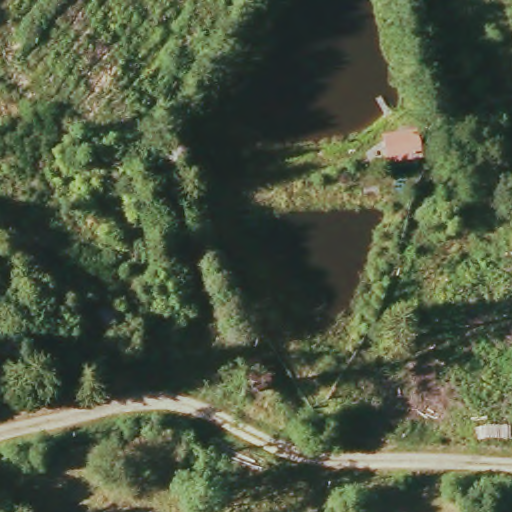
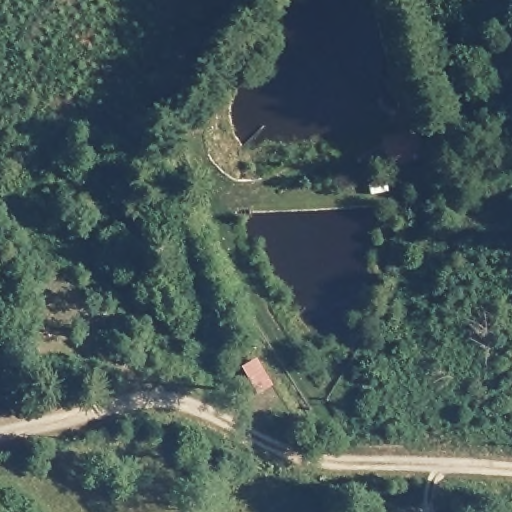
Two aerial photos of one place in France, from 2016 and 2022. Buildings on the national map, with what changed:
unchanged [(417,133),(421,160),(385,165),(381,139),(417,133)]

